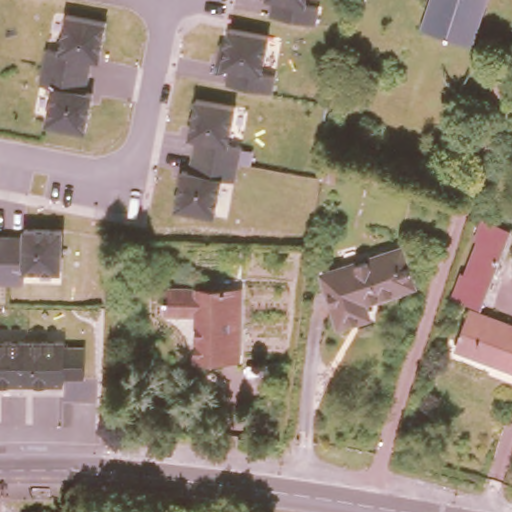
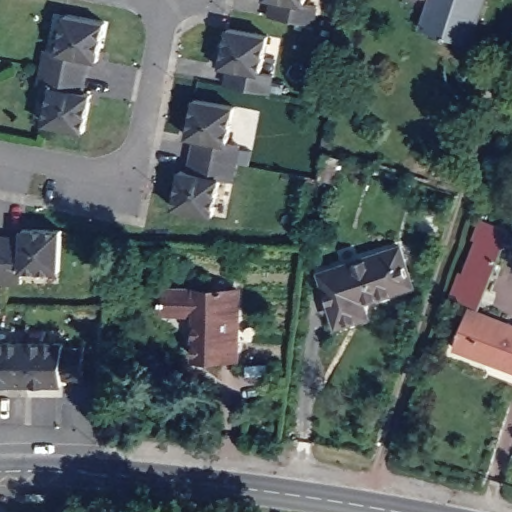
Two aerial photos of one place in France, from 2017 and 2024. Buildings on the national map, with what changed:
unchanged [(307,3),(321,6),(317,24),(269,15),(271,0),(307,0),(307,3)]
unchanged [(467,43),(447,37),(444,39),(442,39),(439,37),(438,34),(417,28),(427,0),(481,0),(467,43)]
unchanged [(105,21),(99,60),(92,59),(87,91),(92,93),(86,130),(45,122),(51,88),(40,84),(47,45),(61,50),(67,15),(105,21)]
unchanged [(269,33),(262,69),(276,74),(272,93),(224,85),(227,65),(222,64),(228,26),(269,33)]
unchanged [(181,167),(189,169),(194,139),(188,137),(196,100),(232,107),(228,140),(241,145),(237,180),(225,178),(216,215),(174,209),(181,167)]
unchanged [(338,171),(324,166),(325,154),(341,159),(338,171)]
unchanged [(477,306),(449,296),(457,273),(461,273),(472,241),(470,240),(477,220),(505,230),(477,306)]
unchanged [(24,269),(24,283),(0,283),(0,236),(22,237),(22,227),(62,229),(62,268),(24,269)]
unchanged [(360,302),(365,315),(335,325),(317,273),(396,248),(409,286),(360,302)]
unchanged [(191,358),(192,315),(161,314),(161,288),(233,290),(231,359),(191,358)]
unchanged [(512,327),(512,372),(452,349),(466,310),(512,327)]
unchanged [(0,339),(65,341),(62,386),(0,385),(0,339)]

